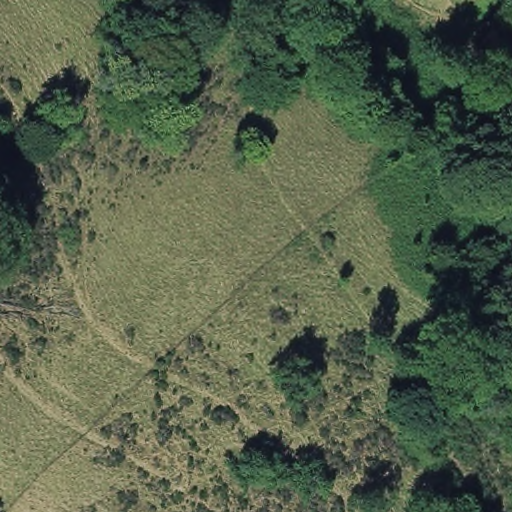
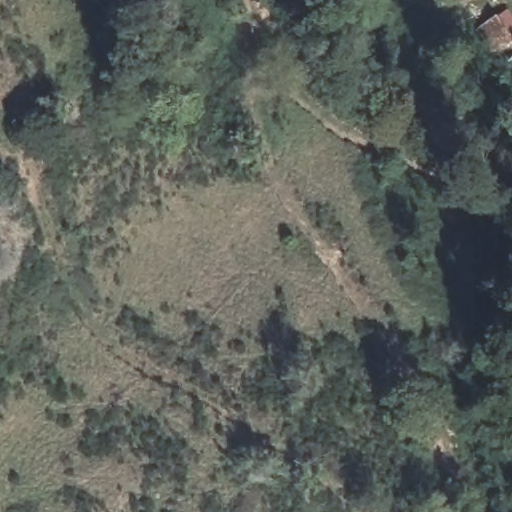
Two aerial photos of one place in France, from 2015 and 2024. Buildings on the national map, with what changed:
unchanged [(512,37),(493,20),(507,5),(512,9),(512,37)]

